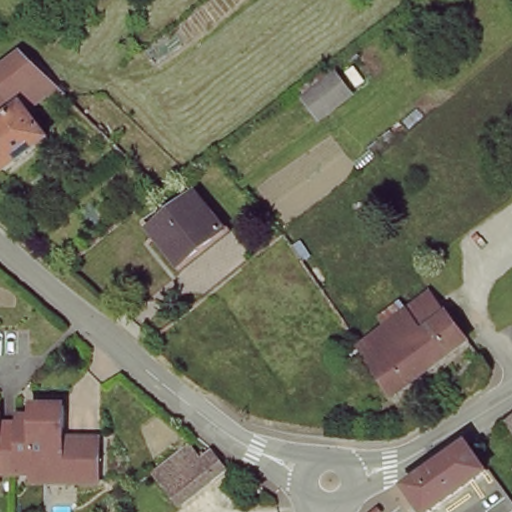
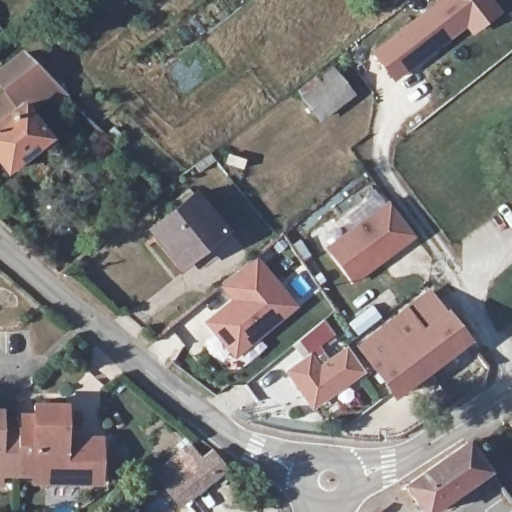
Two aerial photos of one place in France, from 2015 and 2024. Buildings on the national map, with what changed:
new [(492,0),(501,11),(472,35),(465,26),(393,81),(370,53),(438,0),(492,0)]
unchanged [(54,143),(6,175),(0,168),(0,117),(17,107),(2,86),(30,66),(56,92),(27,109),(54,143)]
unchanged [(338,72),(353,93),(321,118),(305,97),(338,72)]
unchanged [(181,269),(152,229),(200,196),(228,235),(181,269)]
new [(415,227),(354,273),(330,241),(391,196),(415,227)]
new [(295,299),(234,348),(208,314),(236,292),(223,276),(255,250),(295,299)]
unchanged [(390,399),(357,350),(403,313),(431,292),(444,316),(465,342),(390,399)]
new [(301,358),(292,345),(322,320),(333,334),(318,346),(327,359),(345,347),(365,372),(313,411),(283,371),(301,358)]
unchanged [(68,437),(67,468),(38,468),(38,475),(31,475),(23,475),(23,451),(23,425),(23,418),(39,418),(39,405),(68,406),(68,437)]
unchanged [(6,424),(23,425),(23,451),(23,475),(0,475),(0,413),(6,413),(6,424)]
unchanged [(512,418),(512,431),(506,422),(512,418)]
unchanged [(31,487),(31,475),(38,475),(38,468),(67,468),(68,437),(107,436),(107,488),(31,487)]
unchanged [(402,489),(465,446),(485,474),(434,512),(419,512),(402,489)]
unchanged [(182,509),(174,499),(155,474),(182,452),(193,463),(206,453),(219,464),(229,473),(182,509)]

